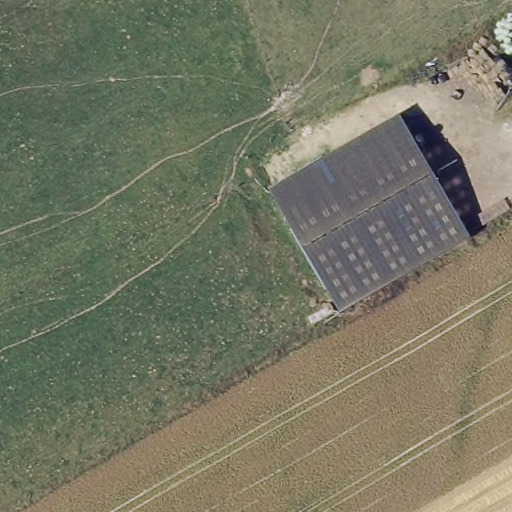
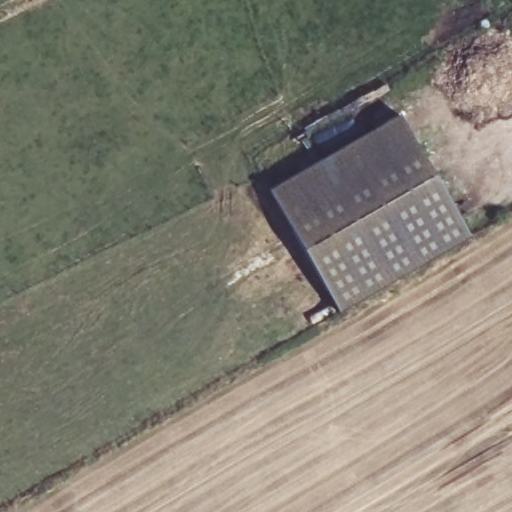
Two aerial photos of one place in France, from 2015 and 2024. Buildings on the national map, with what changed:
unchanged [(272,191),(401,114),(416,139),(474,236),(345,313),(288,216),(272,191)]

